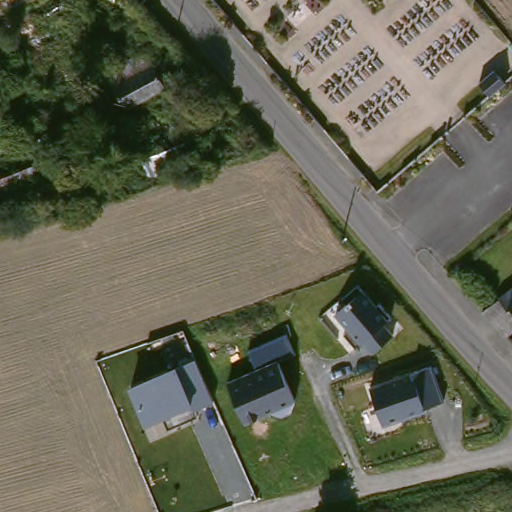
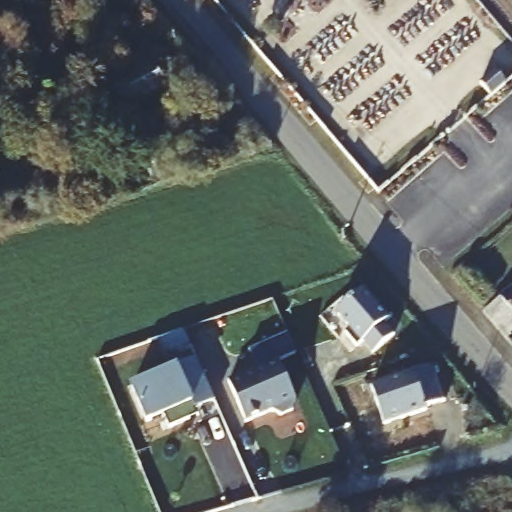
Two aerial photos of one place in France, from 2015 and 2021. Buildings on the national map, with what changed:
unchanged [(165,85),(123,102),(110,78),(155,60),(165,85)]
unchanged [(512,81),(495,97),(484,86),(501,70),(512,81)]
unchanged [(391,320),(386,325),(396,336),(376,355),(337,317),(365,291),(391,320)]
unchanged [(506,301),(512,296),(512,308),(506,301)]
unchanged [(293,412),(280,417),(269,412),(247,421),(229,380),(257,367),(249,348),(286,333),(296,353),(278,360),(296,400),(293,412)]
unchanged [(213,399),(147,425),(132,388),(197,360),(213,399)]
unchanged [(444,405),(385,421),(372,386),(432,370),(444,405)]

